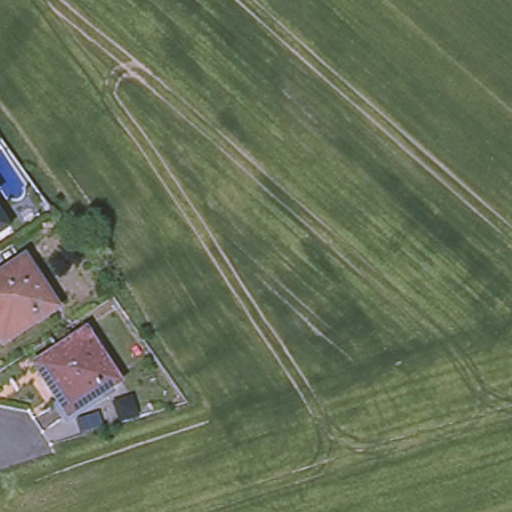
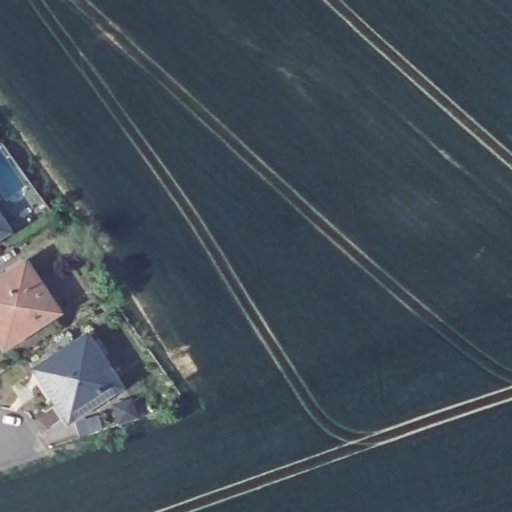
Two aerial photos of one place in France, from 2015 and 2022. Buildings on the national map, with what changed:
unchanged [(5,231),(0,235),(0,224),(5,231)]
unchanged [(55,312),(2,347),(0,344),(0,278),(22,263),(55,312)]
unchanged [(116,386),(67,419),(35,370),(84,337),(116,386)]

